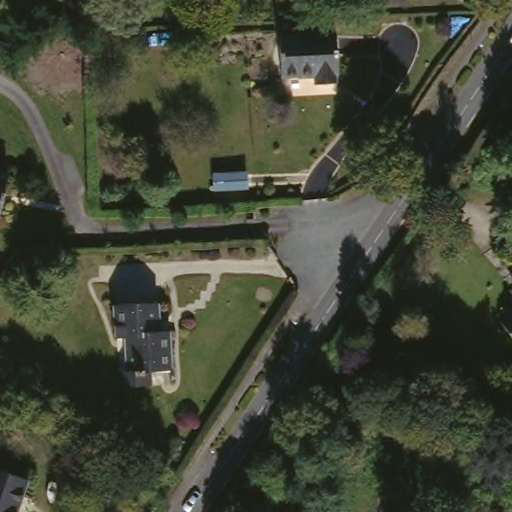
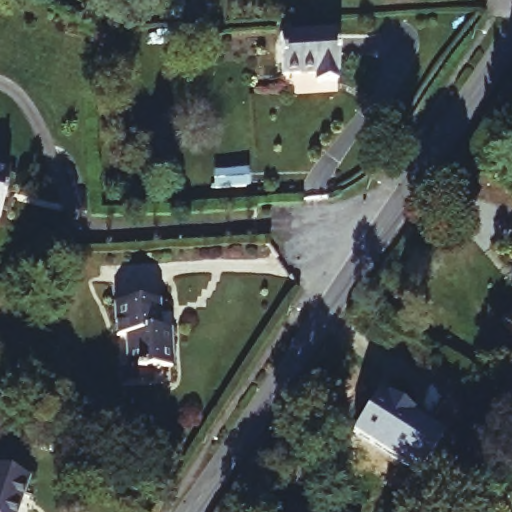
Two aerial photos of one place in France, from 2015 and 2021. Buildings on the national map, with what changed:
unchanged [(339,69),(336,69),(336,79),(316,80),(315,71),(281,73),(279,32),(336,29),(339,69)]
unchanged [(9,173),(0,219),(0,172),(9,173)]
unchanged [(247,173),(248,190),(218,191),(217,175),(247,173)]
unchanged [(122,382),(121,368),(128,368),(126,332),(117,333),(115,301),(157,299),(158,326),(170,326),(172,365),(151,366),(152,380),(122,382)]
unchanged [(512,309),(512,330),(502,317),(512,309)]
new [(379,392),(388,398),(390,395),(413,410),(411,413),(443,435),(419,471),(354,429),(373,402),(379,392)]
unchanged [(16,512),(0,512),(0,465),(29,475),(16,512)]

